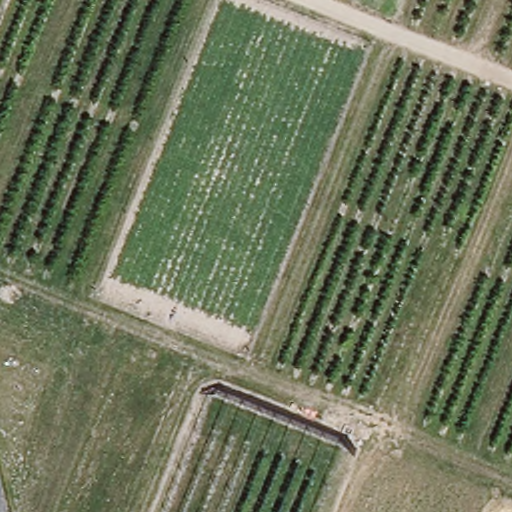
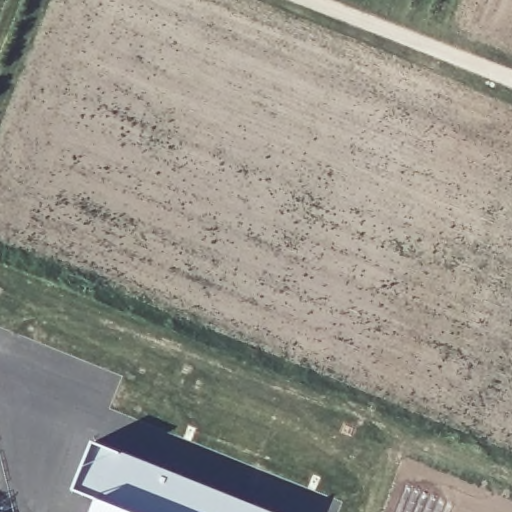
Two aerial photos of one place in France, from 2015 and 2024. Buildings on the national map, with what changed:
new [(100,505),(74,493),(95,445),(256,512),(96,512),(100,505)]

